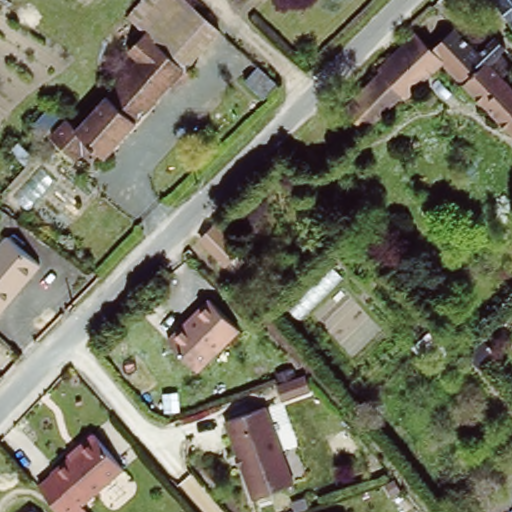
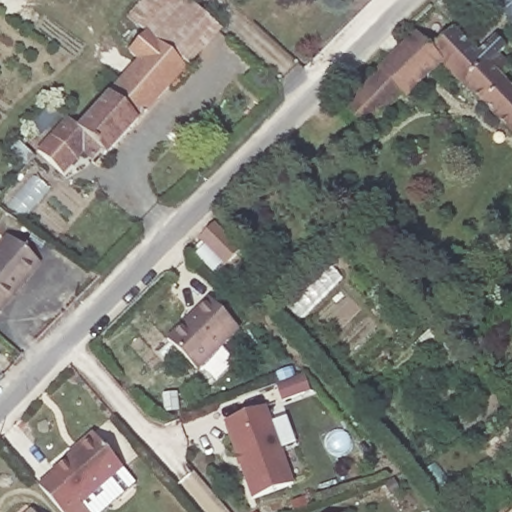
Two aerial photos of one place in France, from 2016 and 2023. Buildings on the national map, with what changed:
unchanged [(202,64),(187,81),(181,77),(117,146),(110,141),(97,156),(87,150),(81,159),(56,136),(75,116),(85,126),(130,76),(123,69),(130,62),(138,69),(150,56),(139,46),(157,26),(137,8),(144,0),(194,0),(227,30),(199,61),(202,64)]
unchanged [(504,0),(512,0),(512,9),(504,0)]
unchanged [(462,85),(440,62),(427,48),(451,28),(475,53),(492,38),(503,49),(497,53),(462,85)]
unchanged [(400,98),(399,95),(360,128),(340,105),(378,72),(374,68),(414,33),(427,48),(440,62),(400,98)]
unchanged [(508,65),(497,76),(510,88),(512,86),(512,139),(462,85),(497,53),(508,65)]
unchanged [(266,96),(247,79),(260,65),(279,82),(266,96)]
unchanged [(0,251),(10,239),(42,266),(0,316),(0,251)]
unchanged [(165,341),(207,297),(236,325),(192,368),(165,341)]
unchanged [(302,372),(307,388),(279,399),(273,383),(302,372)]
unchanged [(265,406),(292,486),(252,499),(225,418),(265,406)]
unchanged [(81,501),(90,512),(67,512),(39,480),(52,469),(50,466),(80,440),(78,438),(92,426),(125,464),(81,501)]
unchanged [(32,505),(38,512),(23,512),(32,505)]

